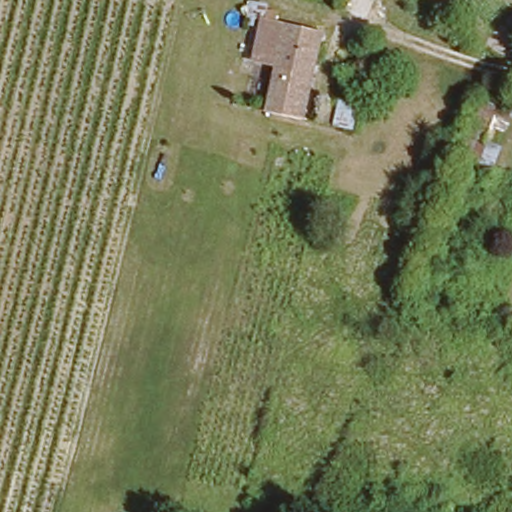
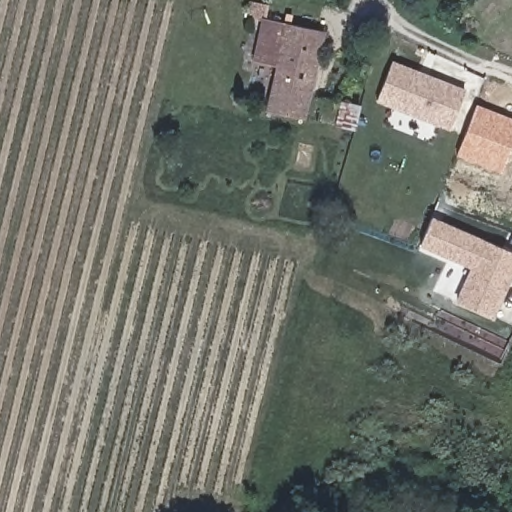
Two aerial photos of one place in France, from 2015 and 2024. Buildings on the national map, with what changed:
unchanged [(320,0),(322,0),(322,1),(320,0)]
unchanged [(265,111),(272,76),(251,71),(259,33),(244,30),(249,14),(320,31),(299,118),(299,119),(265,111)]
new [(467,90),(449,132),(376,103),(393,61),(467,90)]
unchanged [(319,100),(335,104),(340,81),(363,86),(361,95),(357,109),(359,110),(354,130),(351,129),(314,121),(319,100)]
demolished [(479,103),(512,116),(509,125),(497,121),(491,138),(469,129),(479,103)]
new [(502,174),(456,155),(477,104),(512,118),(512,147),(502,174)]
new [(469,269),(421,247),(432,220),(512,253),(512,280),(494,320),(456,303),(469,269)]

